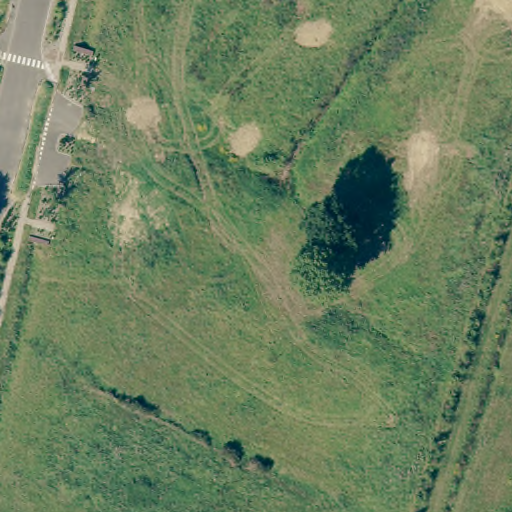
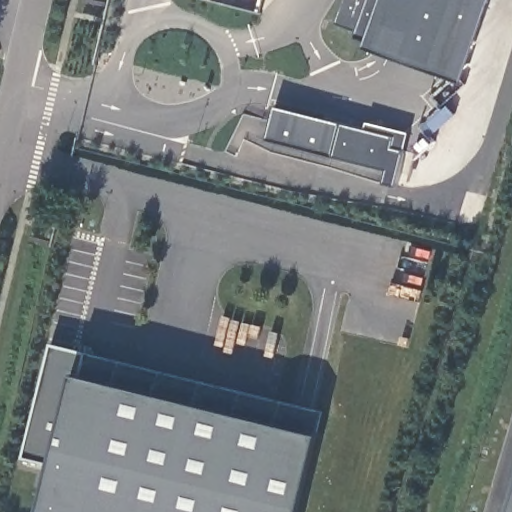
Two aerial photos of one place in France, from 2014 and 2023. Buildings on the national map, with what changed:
new [(463,83),(364,49),(367,42),(354,37),(356,31),(335,24),(345,0),(492,0),(463,83)]
new [(397,187),(385,183),(388,169),(267,139),(276,106),(366,129),(368,121),(410,131),(397,187)]
new [(318,435),(300,512),(43,512),(54,464),(24,457),(52,343),(325,412),(318,435)]

